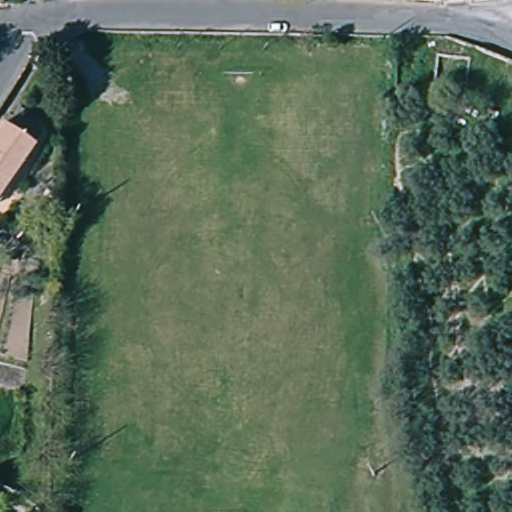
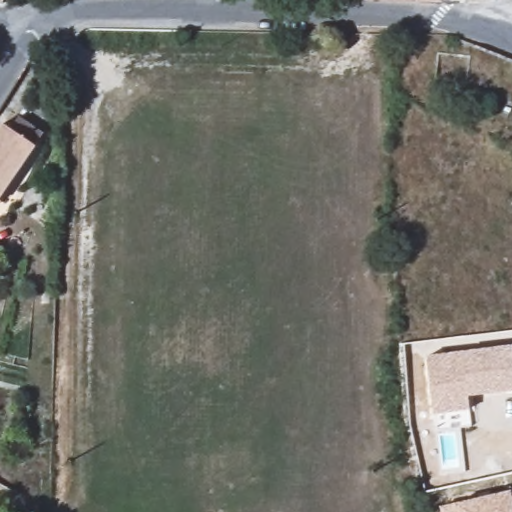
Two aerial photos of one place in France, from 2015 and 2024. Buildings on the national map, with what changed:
unchanged [(6,0),(6,4),(0,4),(0,0),(6,0)]
unchanged [(424,0),(438,0),(438,1),(424,0)]
unchanged [(2,129),(34,151),(0,202),(0,132),(2,129)]
new [(470,410),(433,415),(427,355),(512,344),(512,390),(469,396),(470,410)]
new [(454,503),(511,489),(510,487),(512,486),(512,512),(442,512),(441,506),(454,503)]

